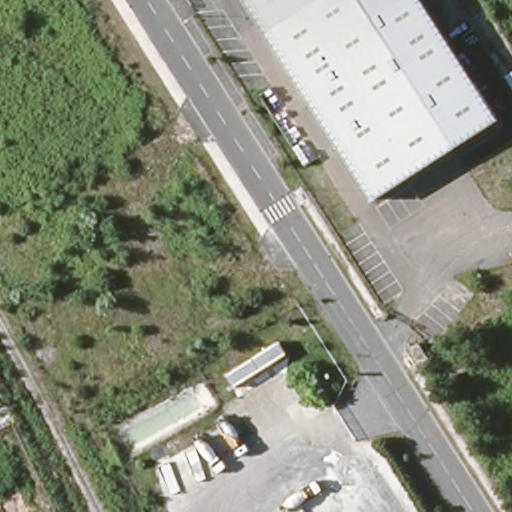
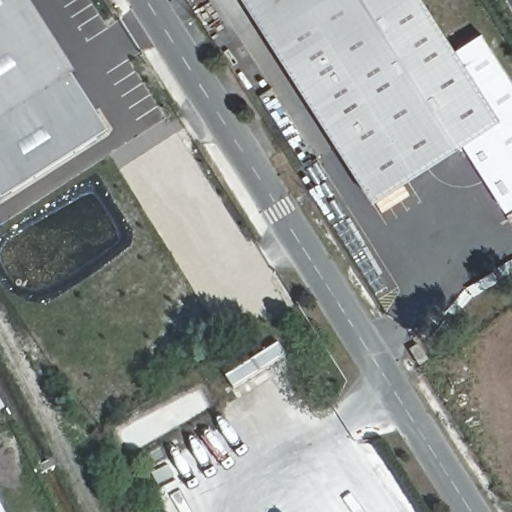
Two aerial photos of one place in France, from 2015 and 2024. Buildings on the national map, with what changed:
new [(29,0),(75,71),(69,77),(106,135),(0,202),(0,0),(29,0)]
unchanged [(245,0),(314,0),(265,32),(245,0)]
unchanged [(373,201),(265,32),(314,0),(424,0),(500,120),(373,201)]
new [(456,51),(481,34),(512,81),(512,207),(506,211),(462,144),(500,120),(456,51)]
unchanged [(234,388),(225,376),(278,342),(286,355),(234,388)]
unchanged [(427,360),(419,365),(410,350),(418,345),(427,360)]
new [(4,512),(0,512),(0,503),(4,512)]

